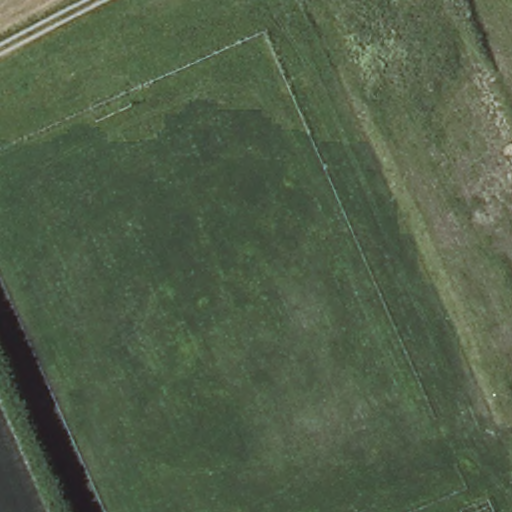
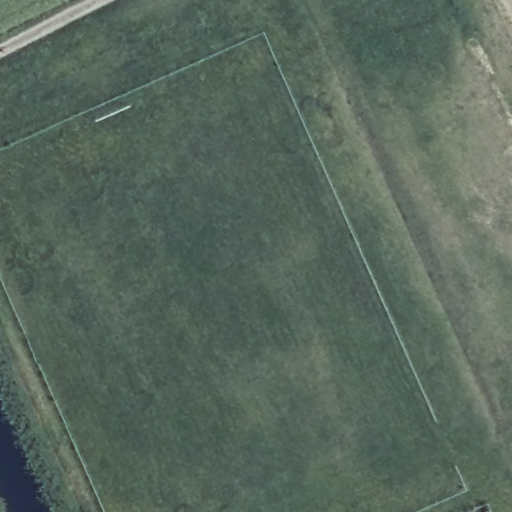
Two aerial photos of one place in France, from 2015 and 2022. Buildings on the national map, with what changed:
unchanged [(484,501),(488,512),(460,512),(484,501)]

